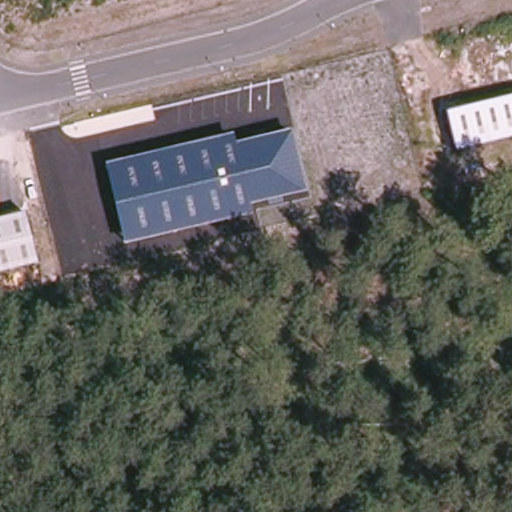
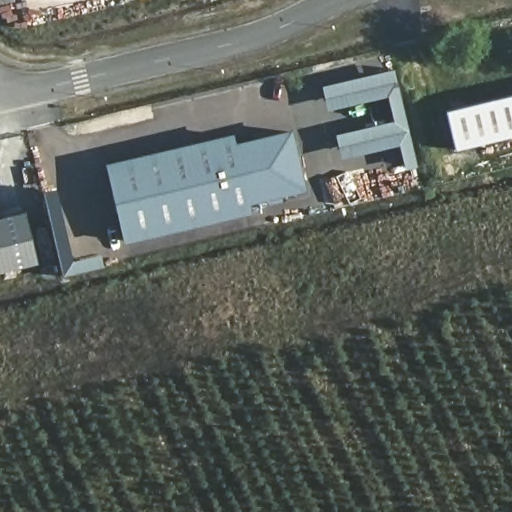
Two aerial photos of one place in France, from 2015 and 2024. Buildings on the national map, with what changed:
new [(389,69),(411,168),(398,170),(393,151),(337,160),(331,135),(385,123),(380,99),(322,112),(315,86),(389,69)]
unchanged [(455,151),(445,111),(512,95),(512,137),(455,151)]
unchanged [(306,191),(249,205),(252,214),(123,245),(105,163),(231,133),(234,142),(292,129),(306,191)]
unchanged [(0,218),(25,212),(38,263),(0,273),(0,218)]

